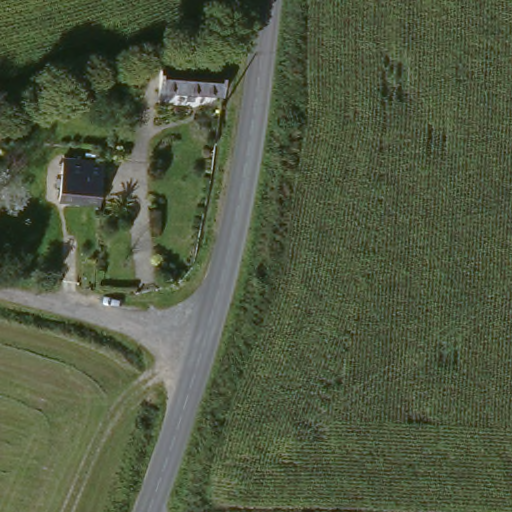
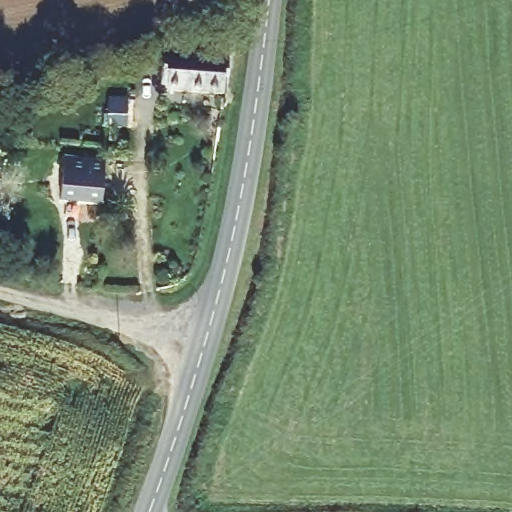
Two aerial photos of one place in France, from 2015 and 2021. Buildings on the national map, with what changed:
unchanged [(159,97),(161,69),(164,69),(184,71),(185,59),(201,60),(202,53),(232,56),(223,103),(159,97)]
unchanged [(105,167),(102,210),(62,206),(62,204),(58,204),(61,163),(99,166),(105,167)]

